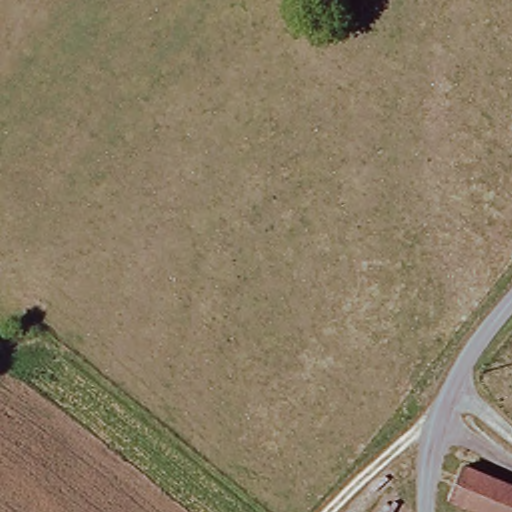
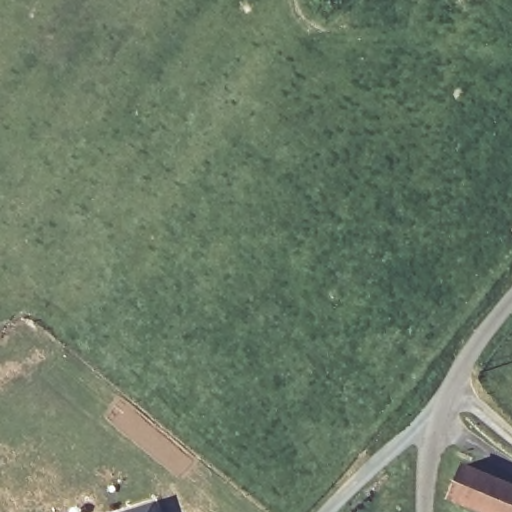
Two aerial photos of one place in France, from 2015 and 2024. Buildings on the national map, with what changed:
unchanged [(466,475),(512,500),(512,512),(460,512),(451,508),(466,475)]
new [(159,512),(118,512),(155,501),(159,512)]

